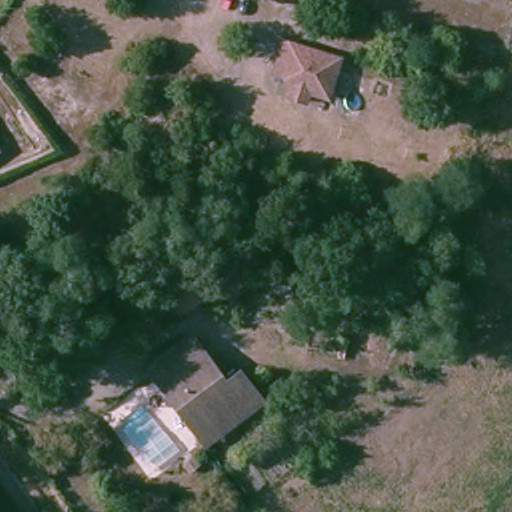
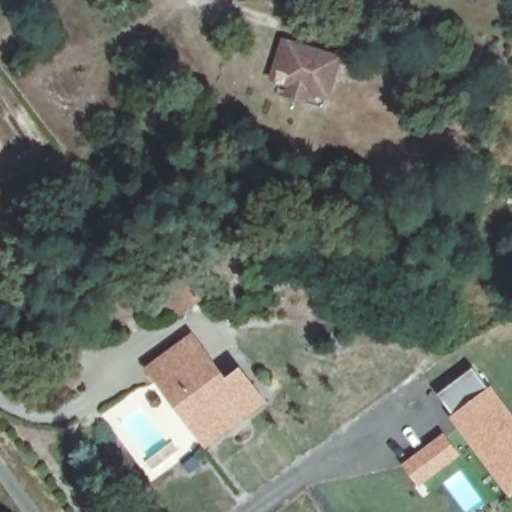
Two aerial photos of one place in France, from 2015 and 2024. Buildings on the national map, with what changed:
unchanged [(288,84),(283,82),(286,75),(273,70),(278,56),(285,39),(340,60),(325,97),(306,90),(303,99),(285,93),(288,84)]
demolished [(271,243),(255,260),(236,243),(253,226),(271,243)]
demolished [(290,285),(276,292),(271,283),(285,276),(290,285)]
unchanged [(200,301),(181,315),(162,292),(181,278),(200,301)]
unchanged [(144,370),(187,338),(221,384),(235,375),(257,405),(216,435),(200,446),(165,399),(144,370)]
new [(472,368),(488,388),(451,415),(436,395),(472,368)]
new [(488,388),(491,385),(512,413),(512,496),(510,498),(449,417),(451,415),(488,388)]
new [(443,432),(461,455),(418,488),(400,465),(443,432)]

